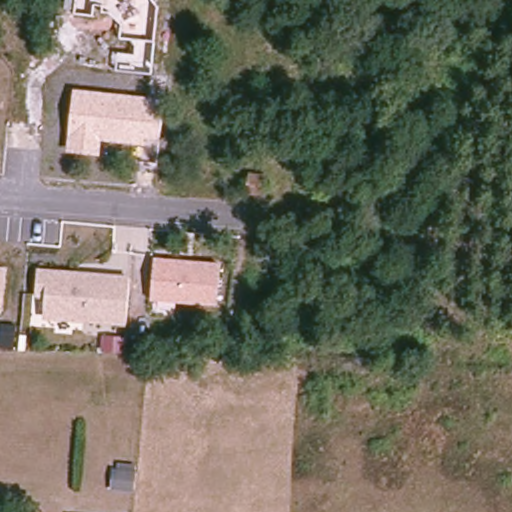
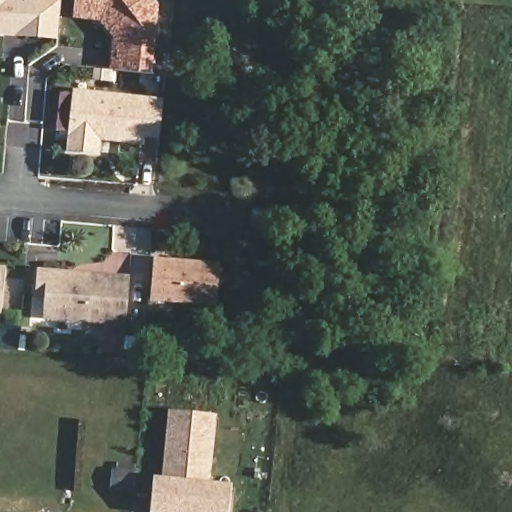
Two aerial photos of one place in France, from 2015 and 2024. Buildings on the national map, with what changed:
new [(0,38),(0,0),(62,0),(59,42),(0,38)]
unchanged [(121,28),(111,19),(74,15),(76,0),(153,0),(160,9),(153,72),(116,70),(121,28)]
unchanged [(161,148),(101,141),(99,155),(65,151),(73,88),(166,99),(161,148)]
unchanged [(228,158),(244,160),(242,176),(226,175),(228,158)]
unchanged [(153,260),(219,263),(216,306),(151,302),(153,260)]
unchanged [(0,268),(6,269),(2,314),(0,314),(0,268)]
unchanged [(124,325),(43,317),(44,300),(35,299),(38,269),(129,277),(124,325)]
new [(163,478),(169,410),(217,415),(211,482),(233,484),(230,512),(150,512),(153,477),(163,478)]
unchanged [(128,493),(106,491),(108,470),(130,472),(128,493)]

